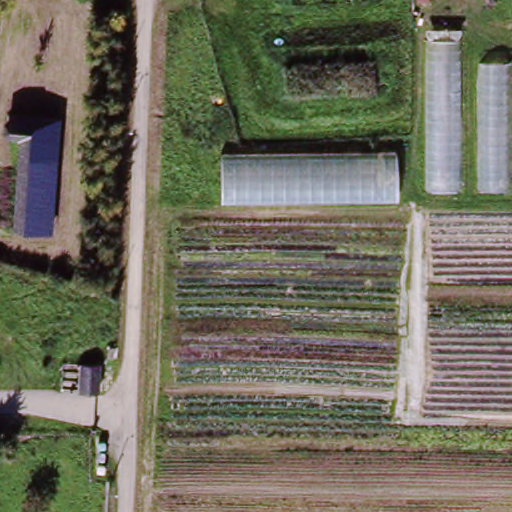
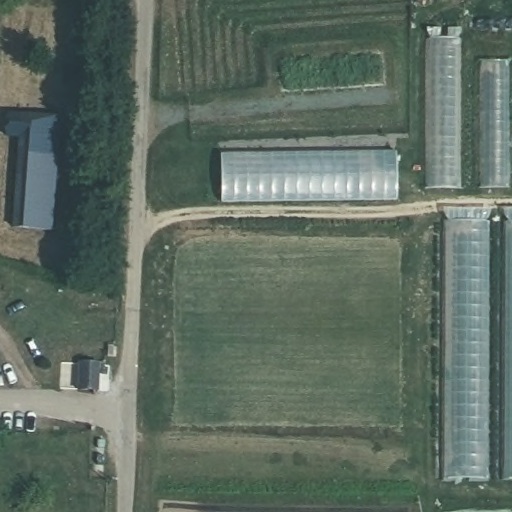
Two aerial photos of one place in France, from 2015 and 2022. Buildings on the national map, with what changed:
unchanged [(426,40),(457,39),(459,59),(509,60),(509,74),(512,74),(512,187),(427,190),(426,40)]
unchanged [(18,140),(6,138),(7,112),(57,117),(54,189),(44,188),(42,214),(14,212),(18,140)]
unchanged [(220,153),(396,150),(397,198),(219,201),(220,153)]
new [(512,220),(512,481),(445,481),(444,221),(512,220)]

